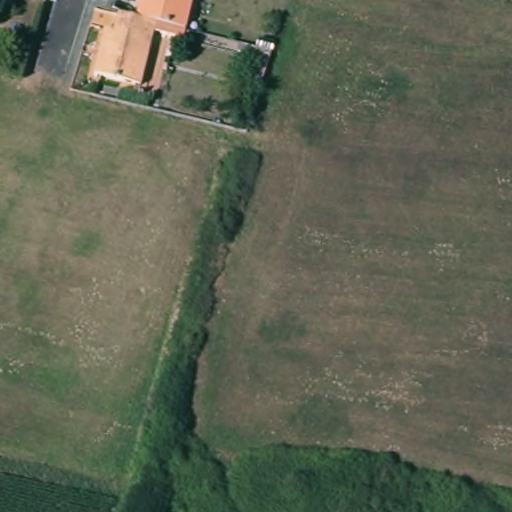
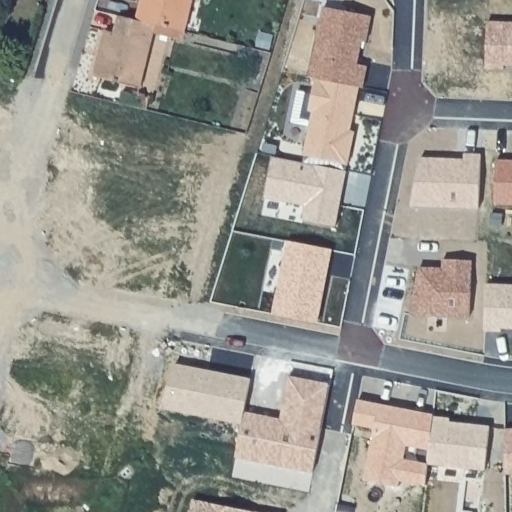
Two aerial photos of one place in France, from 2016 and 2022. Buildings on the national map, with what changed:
unchanged [(138,2),(142,3),(143,0),(189,0),(182,31),(133,19),(138,2)]
new [(323,6),(371,15),(366,41),(362,40),(358,63),(367,66),(363,86),(359,85),(316,77),(310,76),(323,6)]
unchanged [(182,31),(179,39),(150,32),(137,87),(90,76),(101,30),(111,32),(116,15),(133,19),(182,31)]
new [(488,21),(512,22),(512,66),(504,66),(504,70),(486,69),(488,21)]
unchanged [(258,85),(269,54),(247,49),(250,37),(282,45),(278,56),(268,88),(258,85)]
new [(305,154),(313,110),(309,109),(316,77),(359,85),(350,130),(355,131),(348,162),(305,154)]
new [(336,226),(303,219),(306,205),(266,197),(274,156),(347,170),(343,189),(341,204),(336,226)]
new [(495,161),(512,162),(512,206),(493,205),(495,161)]
new [(289,240),(332,249),(317,322),(275,314),(289,240)]
new [(420,267),(443,267),(443,259),(472,260),(470,316),(410,314),(420,267)]
new [(486,283),(512,284),(512,328),(501,328),(501,331),(485,330),(486,283)]
new [(175,362),(251,377),(245,410),(242,422),(161,406),(175,362)]
new [(242,422),(245,410),(281,418),(290,375),(330,383),(313,470),(236,455),(242,422)]
new [(374,426),(353,422),(358,399),(380,403),(388,404),(434,413),(433,415),(428,462),(426,484),(399,478),(398,484),(364,479),(368,459),(374,426)]
new [(433,415),(449,418),(449,421),(490,425),(485,469),(428,462),(433,415)]
new [(512,428),(512,473),(506,473),(505,428),(512,428)]
new [(357,503),(355,512),(336,512),(338,500),(357,503)]

